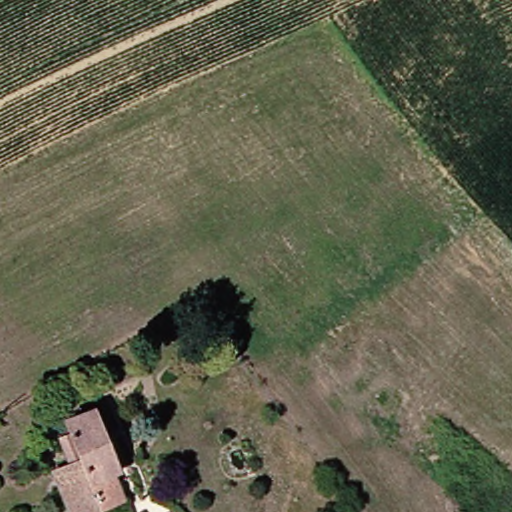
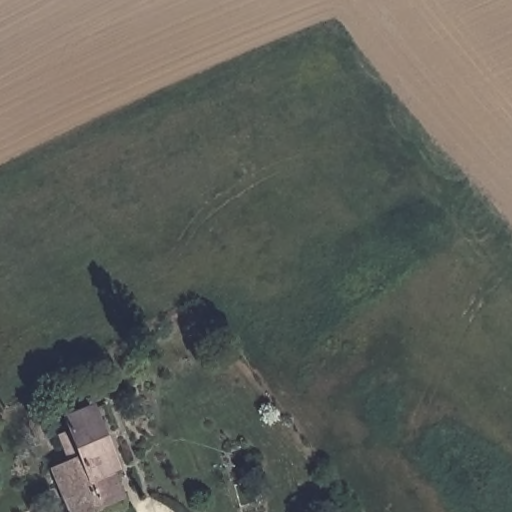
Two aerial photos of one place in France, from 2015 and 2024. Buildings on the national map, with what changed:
unchanged [(103,398),(125,461),(119,464),(131,494),(90,512),(75,512),(57,462),(74,453),(66,428),(80,421),(75,408),(103,398)]

